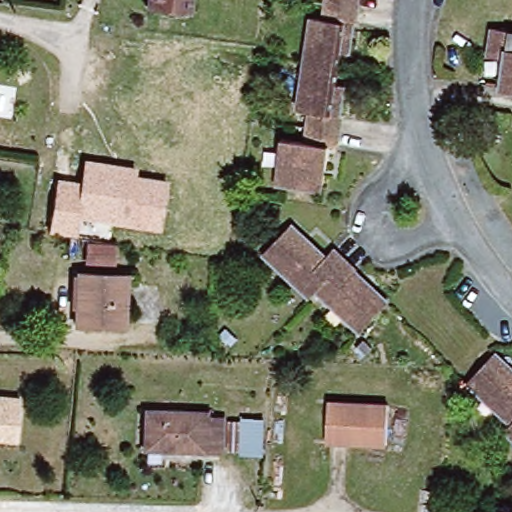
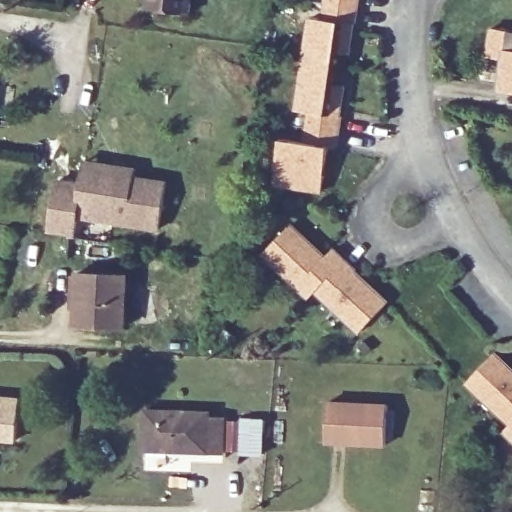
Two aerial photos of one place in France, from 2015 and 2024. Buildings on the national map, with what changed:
unchanged [(187,16),(144,9),(145,0),(189,0),(187,16)]
unchanged [(352,12),(347,56),(335,54),(330,87),(342,89),(332,149),(325,149),(320,191),(272,186),(280,140),(302,143),(307,113),(295,111),(307,21),(322,23),(326,0),(355,0),(352,12)]
unchanged [(492,58),(495,30),(512,32),(512,90),(502,89),(505,60),(492,58)]
unchanged [(82,181),(85,159),(139,166),(137,176),(167,180),(160,230),(77,218),(75,236),(48,232),(56,178),(82,181)]
unchanged [(354,331),(313,289),(304,295),(263,252),(290,226),(324,259),(332,252),(383,302),(354,331)]
unchanged [(117,245),(117,259),(87,258),(87,243),(117,245)]
unchanged [(124,275),(122,327),(71,324),(75,273),(124,275)]
unchanged [(512,367),(512,419),(467,379),(494,351),(512,367)]
unchanged [(14,399),(12,439),(0,438),(0,398),(14,399)]
unchanged [(388,403),(387,443),(327,440),(327,400),(388,403)]
unchanged [(235,452),(157,449),(160,408),(221,409),(221,417),(237,417),(235,452)]
unchanged [(237,417),(265,420),(264,455),(235,452),(237,417)]
unchanged [(512,423),(512,439),(503,432),(512,423)]

